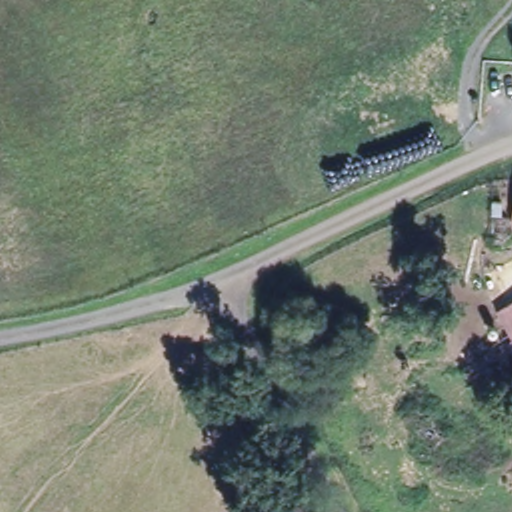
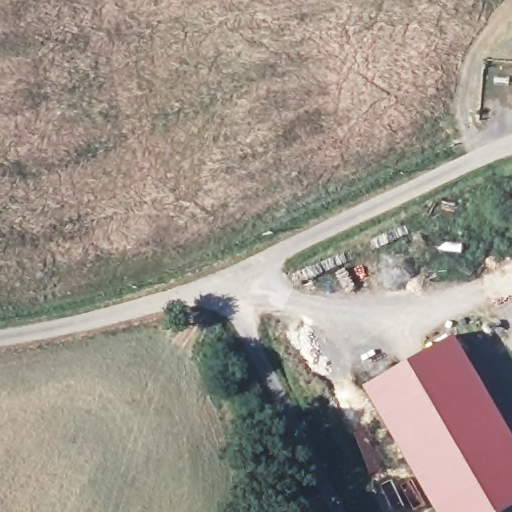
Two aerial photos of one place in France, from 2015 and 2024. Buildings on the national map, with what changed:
unchanged [(512,200),(512,215),(508,214),(512,200)]
unchanged [(512,300),(512,337),(496,309),(512,300)]
new [(458,332),(512,426),(512,504),(499,512),(438,512),(364,386),(458,332)]

